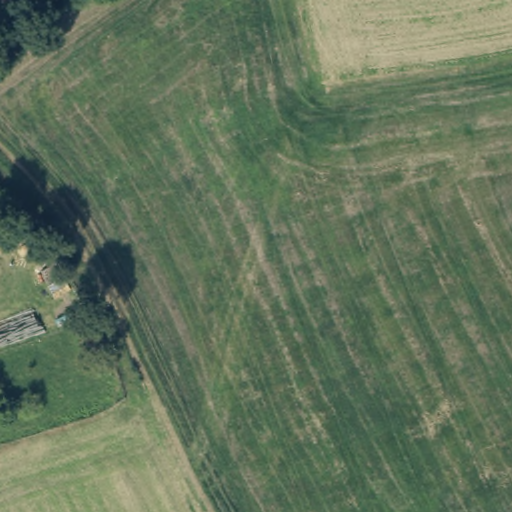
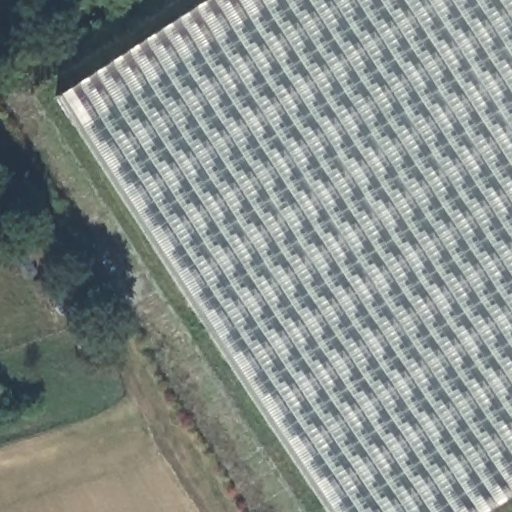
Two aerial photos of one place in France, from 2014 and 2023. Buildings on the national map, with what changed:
new [(323,512),(54,96),(203,0),(512,0),(512,489),(476,512),(323,512)]

